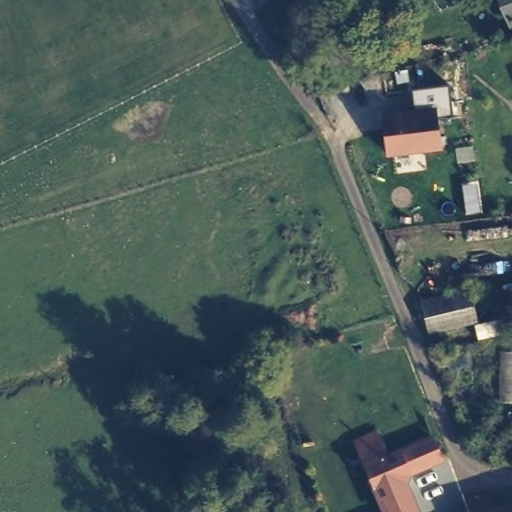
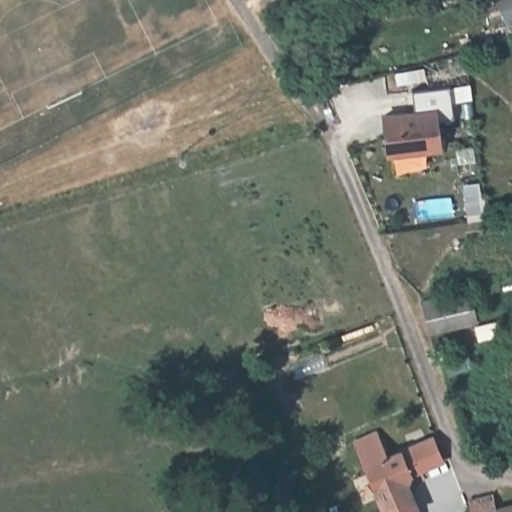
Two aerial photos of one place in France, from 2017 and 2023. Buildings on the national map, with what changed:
unchanged [(511,23),(503,0),(512,0),(512,23),(511,23)]
unchanged [(442,150),(385,156),(381,111),(437,105),(442,150)]
unchanged [(472,290),(479,323),(428,333),(422,300),(472,290)]
unchanged [(408,473),(405,483),(417,510),(414,512),(387,512),(360,449),(380,442),(386,458),(432,439),(441,458),(408,473)]
unchanged [(476,512),(512,504),(512,512),(476,512)]

